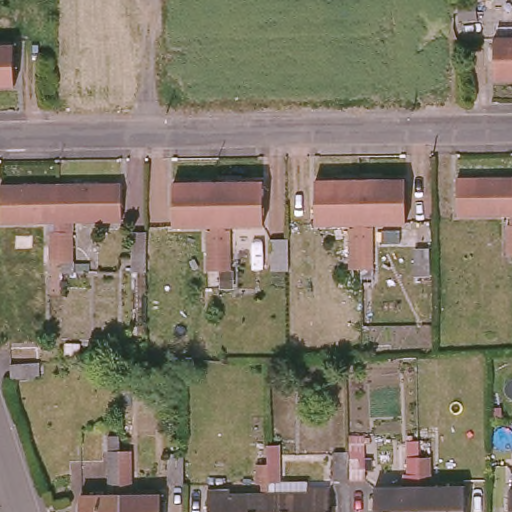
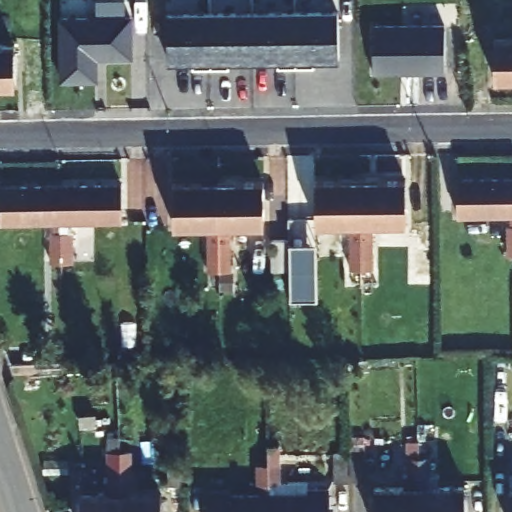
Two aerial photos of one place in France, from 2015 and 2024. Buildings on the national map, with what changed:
new [(135,15),(134,58),(97,57),(98,80),(61,79),(59,14),(98,13),(97,0),(125,0),(125,14),(135,15)]
new [(338,9),(339,61),(168,62),(168,11),(338,9)]
new [(447,70),(374,71),(373,22),(446,20),(447,70)]
unchanged [(512,37),(512,78),(492,78),(492,37),(512,37)]
unchanged [(14,84),(0,84),(0,44),(13,44),(14,84)]
unchanged [(354,179),(399,178),(399,221),(361,221),(361,235),(368,235),(368,270),(355,270),(354,179)]
unchanged [(309,180),(354,179),(355,270),(343,270),(343,235),(348,235),(348,222),(309,222),(309,180)]
unchanged [(217,181),(263,180),(264,222),(224,222),(225,237),(231,237),(231,272),(218,272),(217,181)]
unchanged [(121,181),(122,219),(67,219),(68,231),(74,231),(74,267),(60,267),(59,182),(121,181)]
unchanged [(217,181),(218,272),(205,272),(204,237),(211,237),(211,222),(174,224),(173,182),(217,181)]
unchanged [(60,267),(48,267),(48,232),(54,232),(54,219),(0,220),(0,182),(59,182),(60,267)]
unchanged [(512,182),(512,267),(504,267),(504,231),(511,231),(511,217),(456,218),(455,182),(512,182)]
unchanged [(289,257),(274,257),(273,232),(289,231),(289,257)]
new [(318,298),(289,298),(289,257),(289,242),(315,242),(318,298)]
unchanged [(160,492),(161,512),(79,512),(79,492),(113,492),(113,481),(107,480),(106,446),(119,446),(131,446),(131,480),(125,480),(125,490),(125,492),(160,492)]
unchanged [(349,477),(333,476),(333,447),(348,447),(349,477)]
unchanged [(431,460),(431,478),(424,478),(424,490),(463,488),(464,512),(419,512),(418,461),(431,460)]
unchanged [(208,487),(228,487),(229,493),(261,493),(261,479),(254,479),(254,461),(268,461),(268,512),(209,512),(208,487)]
unchanged [(268,461),(280,461),(281,478),(274,479),(275,493),(305,492),(305,487),(329,487),(329,512),(268,512),(268,461)]
unchanged [(373,491),(411,490),(411,478),(404,478),(404,461),(418,461),(419,512),(373,512),(373,491)]
unchanged [(508,492),(512,492),(512,512),(509,512),(508,492)]

